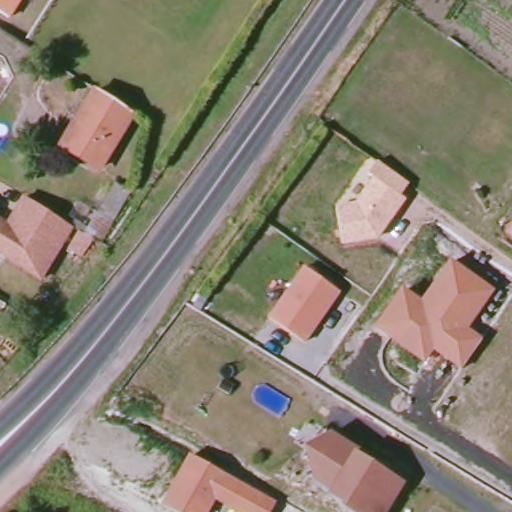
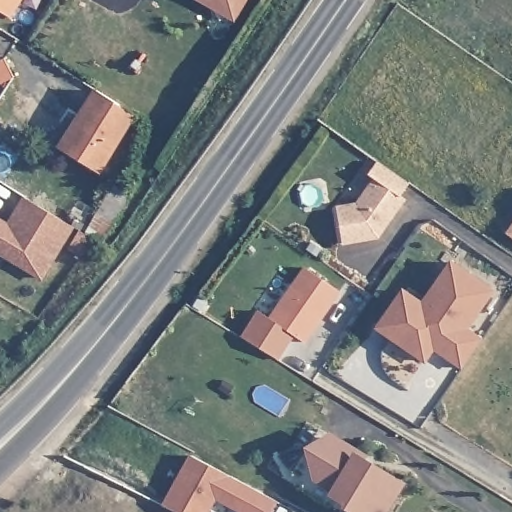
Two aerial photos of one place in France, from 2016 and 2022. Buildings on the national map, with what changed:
unchanged [(0,12),(0,0),(21,0),(10,18),(0,12)]
new [(195,0),(246,0),(234,22),(195,0)]
unchanged [(138,116),(104,171),(67,150),(103,94),(138,116)]
unchanged [(401,198),(406,202),(382,238),(345,245),(338,206),(360,202),(374,179),(370,176),(380,162),(410,185),(401,198)]
unchanged [(113,184),(123,190),(92,241),(82,235),(113,184)]
unchanged [(41,279),(0,253),(0,221),(7,226),(24,198),(72,228),(41,279)]
unchanged [(505,234),(512,224),(512,238),(505,234)]
unchanged [(495,291),(468,330),(482,341),(461,370),(433,351),(423,365),(375,328),(403,287),(421,301),(450,262),(495,291)]
unchanged [(305,343),(271,319),(306,268),(342,293),(305,343)]
unchanged [(392,512),(353,512),(328,494),(331,490),(312,480),(306,445),(334,434),(408,485),(392,512)]
unchanged [(278,503),(273,512),(239,512),(215,499),(207,512),(174,512),(160,505),(190,456),(278,503)]

